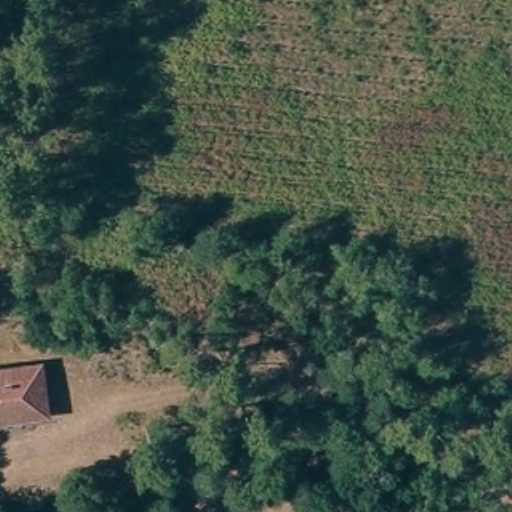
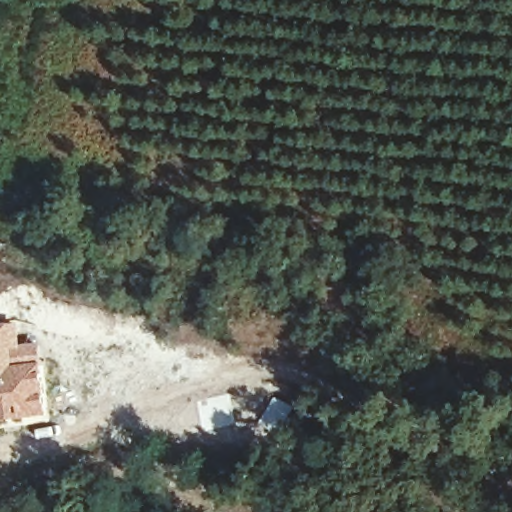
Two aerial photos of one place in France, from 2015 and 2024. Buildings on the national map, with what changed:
new [(18,346),(9,347),(12,369),(0,371),(0,325),(5,324),(15,322),(18,346)]
unchanged [(48,407),(0,417),(0,371),(39,365),(48,407)]

